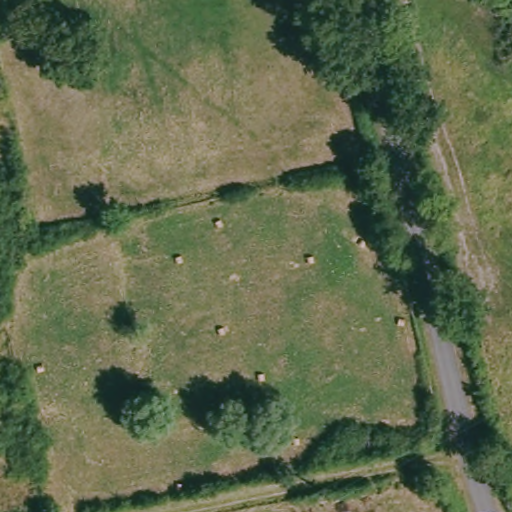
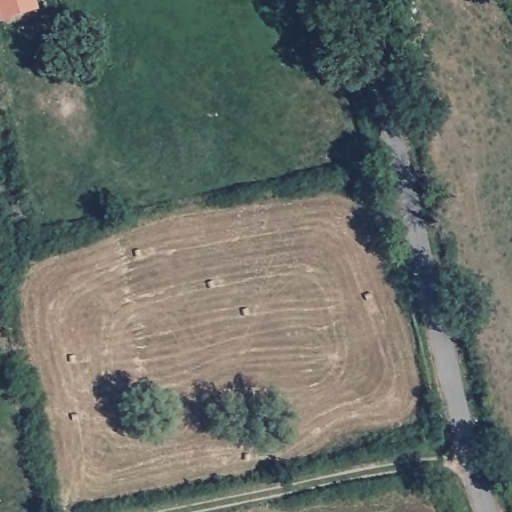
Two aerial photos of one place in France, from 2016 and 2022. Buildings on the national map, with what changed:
new [(2,21),(0,16),(0,0),(36,0),(39,9),(2,21)]

